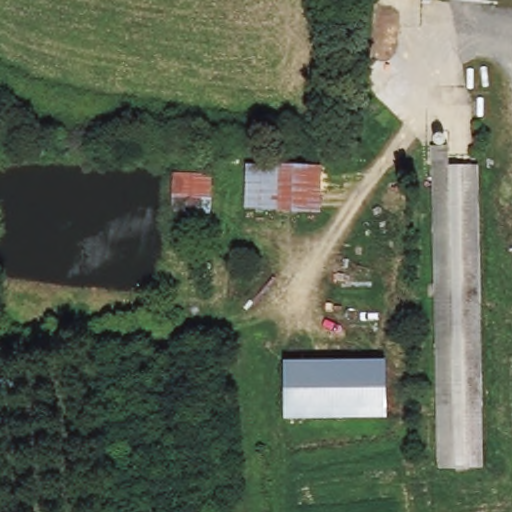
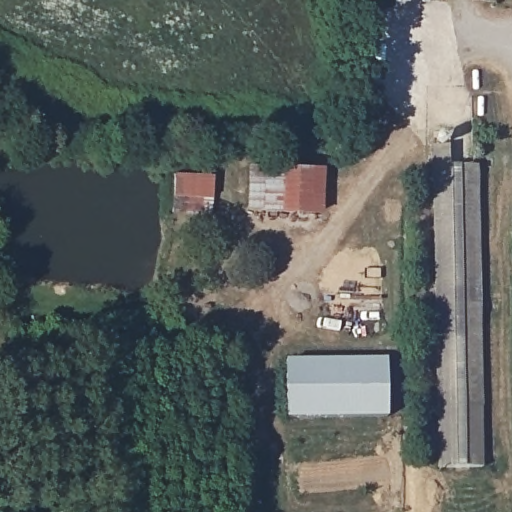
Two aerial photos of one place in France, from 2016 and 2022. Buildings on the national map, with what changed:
unchanged [(441,150),(456,150),(456,169),(484,169),(482,469),(437,468),(440,221),(441,150)]
unchanged [(249,212),(251,164),(324,168),(325,211),(249,212)]
unchanged [(216,176),(213,217),(184,215),(184,202),(177,201),(178,171),(216,176)]
unchanged [(288,421),(286,362),(390,360),(391,419),(288,421)]

